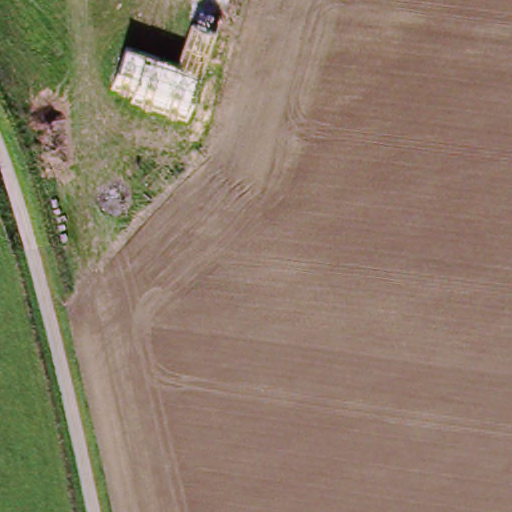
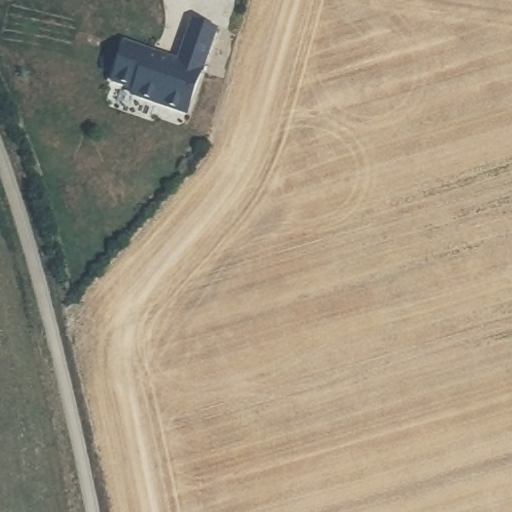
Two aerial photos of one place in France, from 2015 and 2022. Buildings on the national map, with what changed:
new [(178,62),(193,21),(216,30),(186,114),(132,95),(134,89),(113,81),(126,43),(178,62)]

